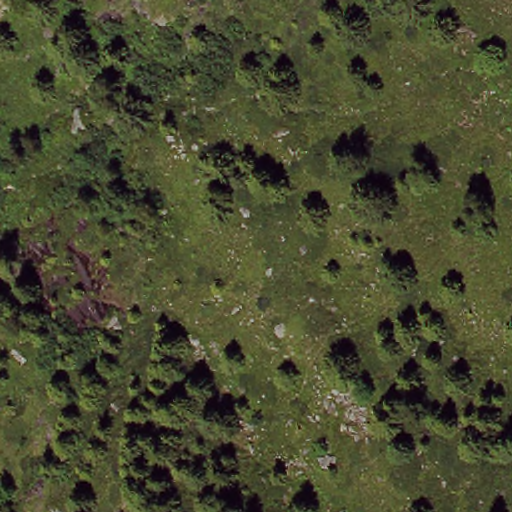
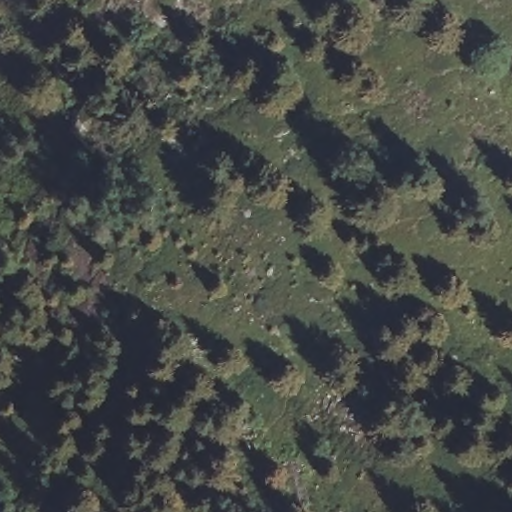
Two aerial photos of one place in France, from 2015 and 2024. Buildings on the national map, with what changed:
unchanged [(0,10),(0,0),(7,0),(0,10)]

